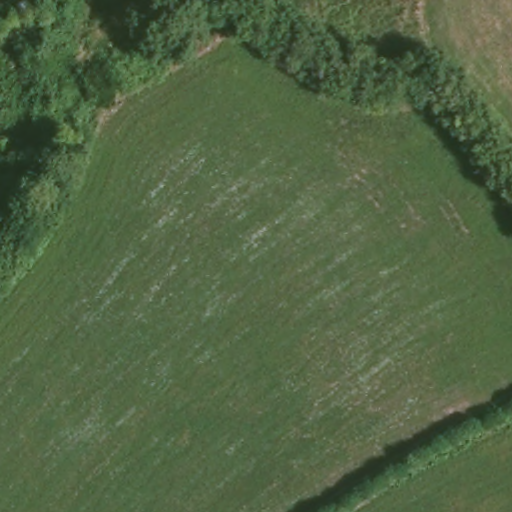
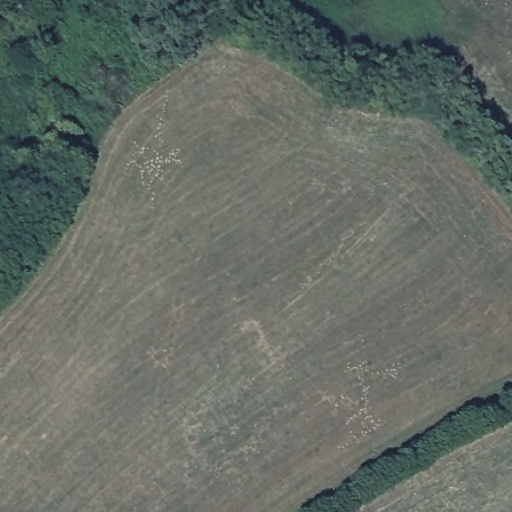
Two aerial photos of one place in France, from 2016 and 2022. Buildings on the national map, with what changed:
[]

